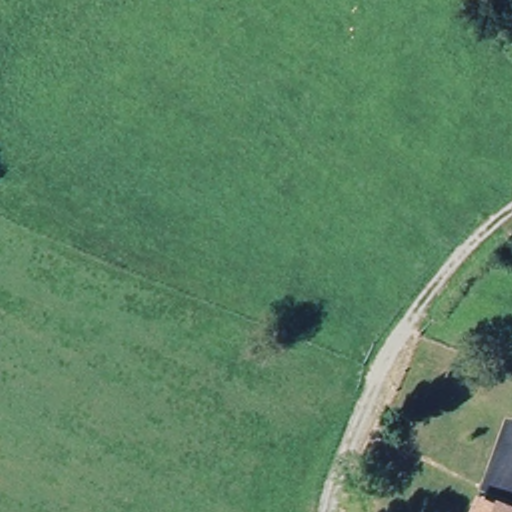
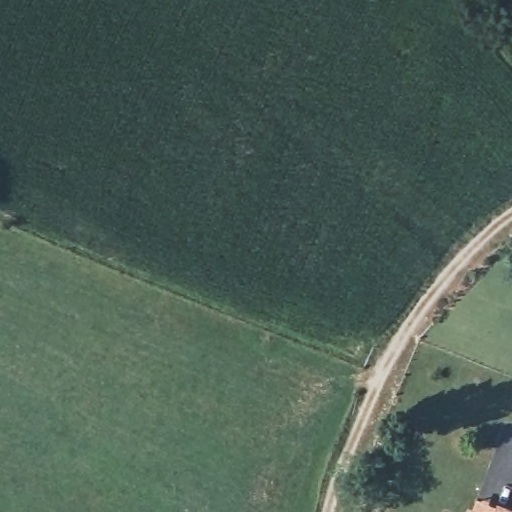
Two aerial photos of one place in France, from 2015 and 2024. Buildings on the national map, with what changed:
unchanged [(476,512),(481,500),(502,508),(501,512),(476,512)]
unchanged [(501,512),(502,508),(511,512),(501,512)]

